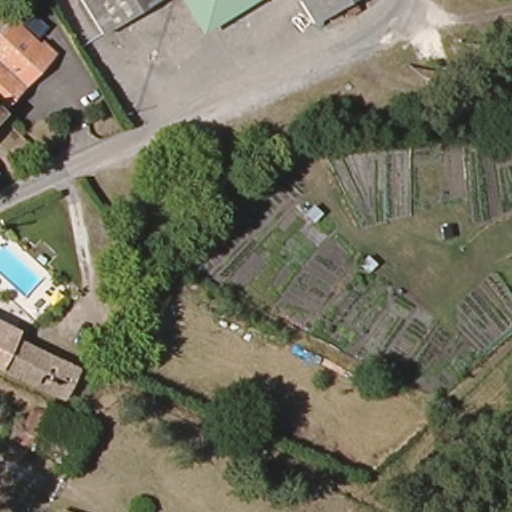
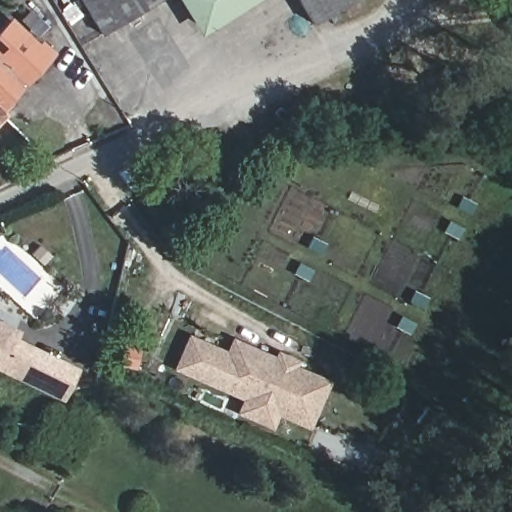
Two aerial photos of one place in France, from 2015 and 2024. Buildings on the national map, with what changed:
unchanged [(98,35),(78,0),(158,0),(98,35)]
unchanged [(196,32),(177,0),(249,0),(196,32)]
unchanged [(309,34),(291,0),(370,0),(309,34)]
unchanged [(14,25),(53,61),(0,116),(0,40),(14,25)]
unchanged [(70,368),(56,400),(0,370),(0,332),(70,368)]
new [(330,380),(309,429),(277,416),(272,428),(236,413),(241,400),(172,370),(187,333),(224,351),(231,337),(273,355),(275,350),(298,361),(297,366),(330,380)]
unchanged [(78,437),(65,467),(30,453),(42,425),(78,437)]

